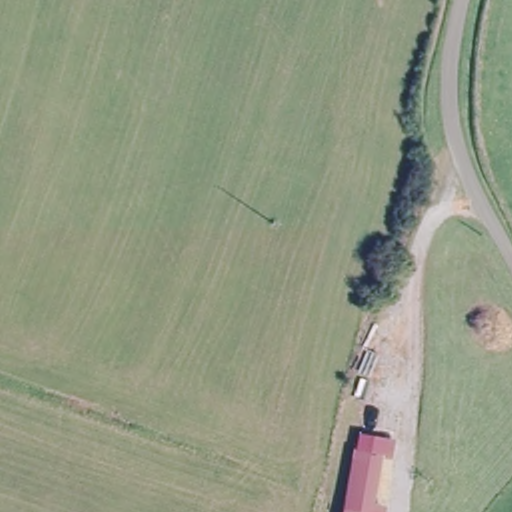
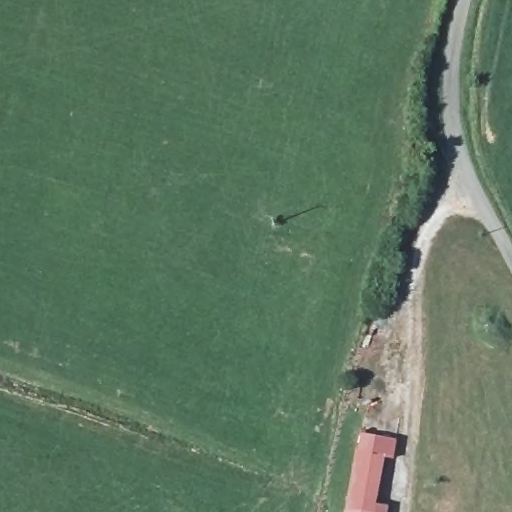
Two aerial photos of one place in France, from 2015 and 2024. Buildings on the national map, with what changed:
unchanged [(361,454),(380,457),(372,506),(390,509),(390,512),(352,512),(361,454)]

